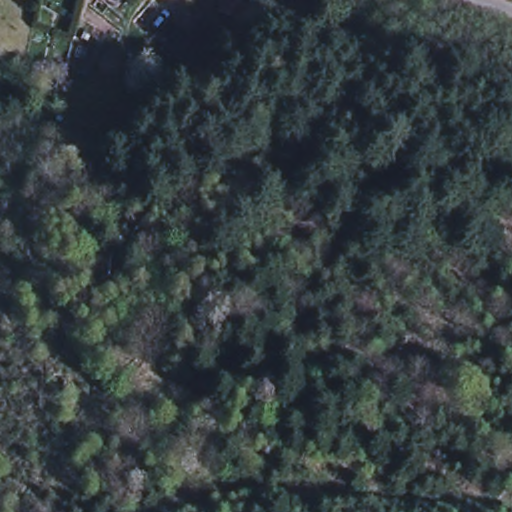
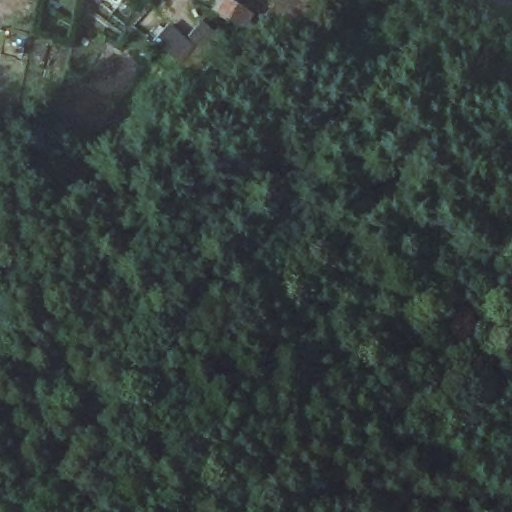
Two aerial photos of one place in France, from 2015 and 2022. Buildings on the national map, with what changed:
unchanged [(220,0),(223,0),(241,10),(235,22),(215,12),(220,0)]
unchanged [(175,71),(181,61),(152,37),(165,21),(188,33),(200,22),(223,37),(198,77),(175,71)]

